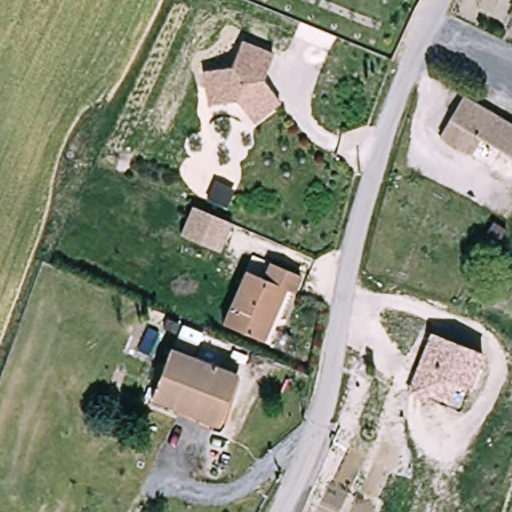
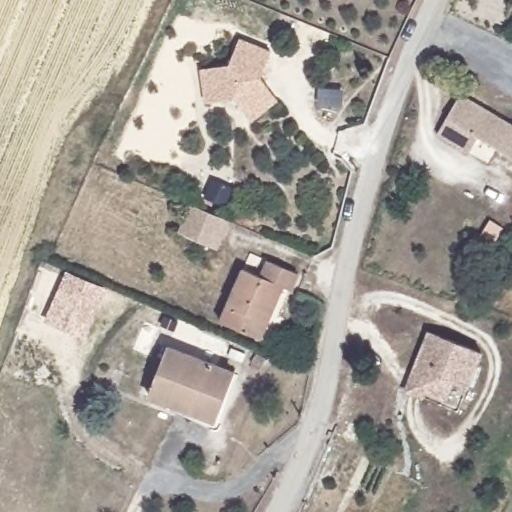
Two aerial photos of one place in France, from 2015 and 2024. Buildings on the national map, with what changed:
unchanged [(249,111),(241,100),(229,103),(214,104),(212,89),(210,70),(238,67),(247,40),(279,53),(268,79),(276,90),(285,101),(258,122),(249,111)]
unchanged [(512,128),(512,163),(472,142),(463,160),(434,145),(456,101),(512,128)]
unchanged [(179,233),(192,204),(230,221),(218,250),(179,233)]
unchanged [(255,338),(217,322),(240,270),(257,278),(263,265),(291,276),(287,289),(264,343),(255,338)]
new [(67,272),(109,290),(86,341),(45,323),(67,272)]
unchanged [(412,392),(435,334),(473,349),(487,355),(464,413),(451,407),(412,392)]
unchanged [(149,399),(169,351),(231,378),(212,425),(149,399)]

